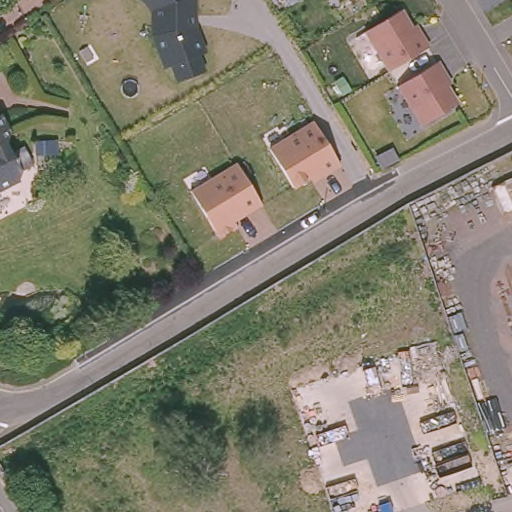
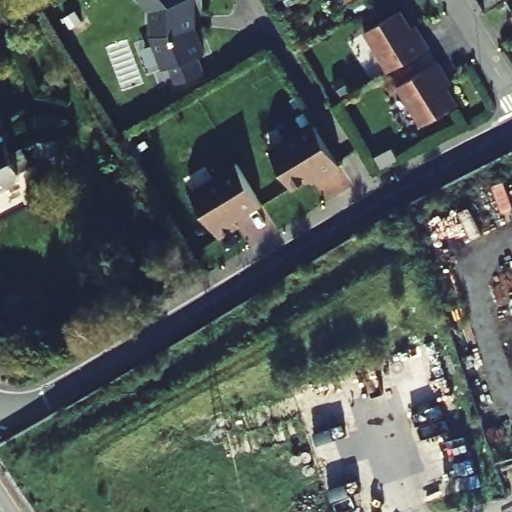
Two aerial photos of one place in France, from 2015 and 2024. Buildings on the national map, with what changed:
unchanged [(196,29),(206,52),(199,55),(206,72),(177,82),(171,65),(163,69),(151,36),(151,11),(141,0),(196,0),(196,29)]
unchanged [(404,12),(421,37),(425,34),(433,48),(394,72),(394,71),(370,33),(404,12)]
unchanged [(443,62),(452,76),(447,79),(463,104),(429,126),(404,87),(443,62)]
unchanged [(342,167),(314,184),(311,179),(294,189),(269,147),(314,121),(342,167)]
unchanged [(5,130),(3,136),(9,145),(22,138),(33,155),(24,160),(21,171),(0,183),(3,189),(0,191),(0,123),(5,130)]
unchanged [(239,229),(219,240),(190,191),(236,163),(264,206),(235,223),(239,229)]

